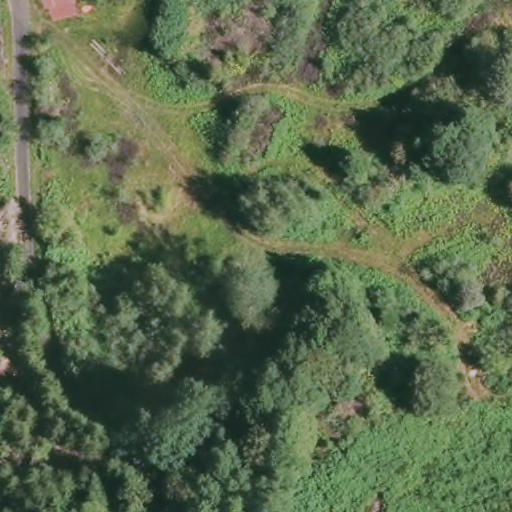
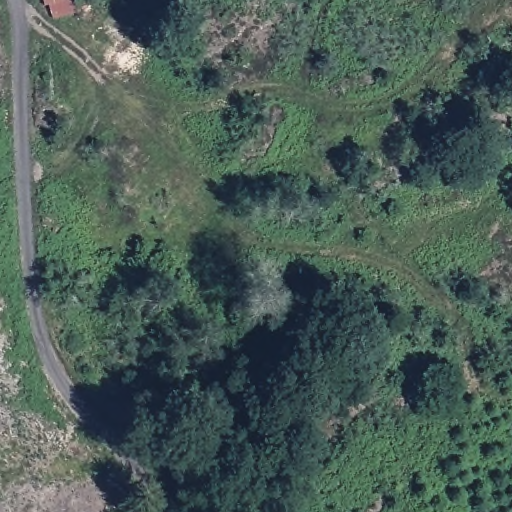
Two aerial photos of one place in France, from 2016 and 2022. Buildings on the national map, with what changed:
unchanged [(45,6),(40,6),(39,0),(73,0),(78,14),(48,22),(45,6)]

